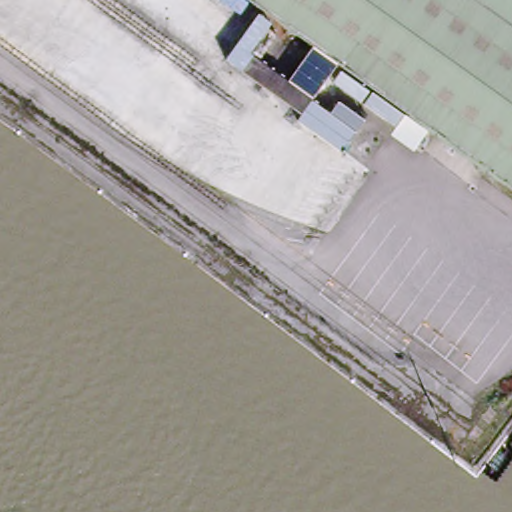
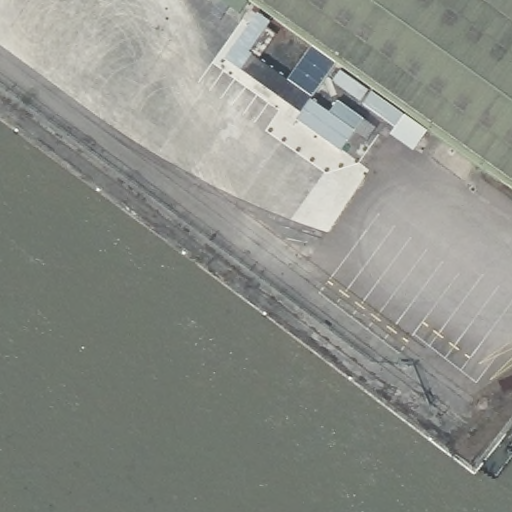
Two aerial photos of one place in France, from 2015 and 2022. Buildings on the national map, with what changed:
unchanged [(354,73),(353,75),(246,0),(253,0),(354,73)]
unchanged [(354,73),(253,0),(402,0),(354,73)]
unchanged [(512,15),(512,186),(444,139),(354,73),(402,0),(491,0),(512,15)]
unchanged [(512,15),(491,0),(512,0),(512,15)]

